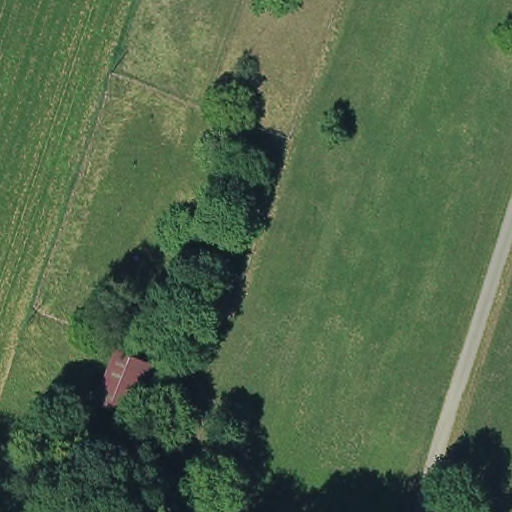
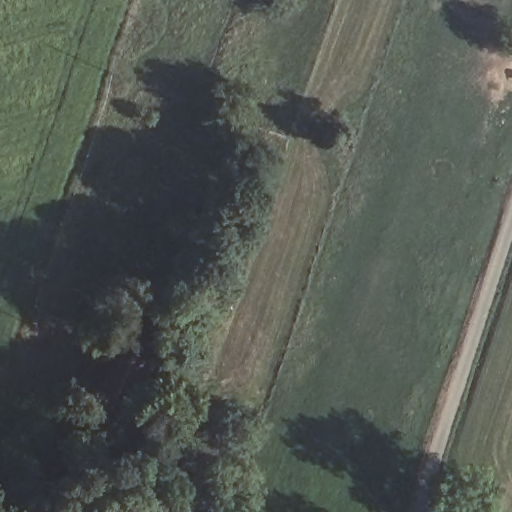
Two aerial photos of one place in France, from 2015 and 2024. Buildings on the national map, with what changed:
unchanged [(117,442),(84,428),(117,348),(159,365),(117,442)]

